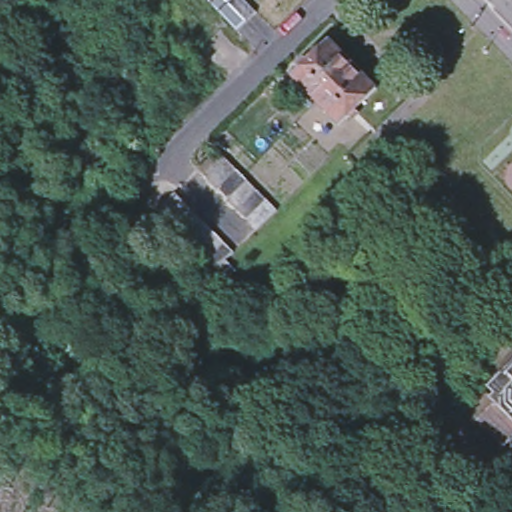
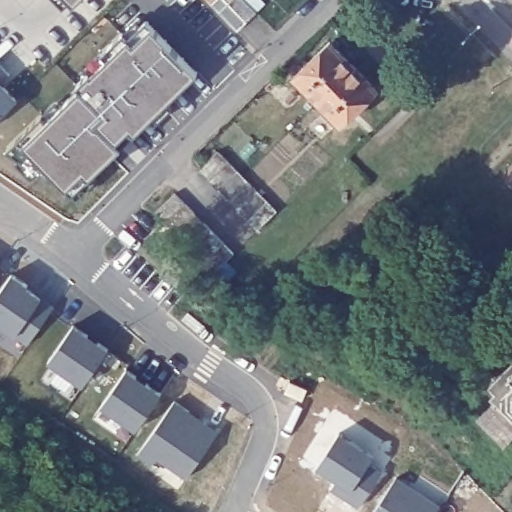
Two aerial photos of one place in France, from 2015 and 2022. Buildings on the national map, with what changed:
new [(61,0),(82,0),(71,11),(61,0)]
unchanged [(215,0),(245,0),(256,11),(246,20),(236,30),(211,4),(215,0)]
new [(75,199),(70,194),(46,169),(42,174),(38,170),(30,178),(13,161),(18,156),(4,148),(40,114),(53,100),(58,106),(78,86),(75,83),(87,71),(84,68),(99,53),(122,31),(135,18),(140,23),(144,18),(196,71),(166,101),(171,106),(153,123),(148,117),(89,176),(94,180),(75,199)]
unchanged [(329,40),(376,90),(339,125),(291,76),(329,40)]
new [(0,78),(0,64),(8,71),(0,78)]
new [(0,112),(0,84),(14,98),(0,112)]
unchanged [(245,219),(235,209),(226,199),(215,189),(206,179),(196,169),(197,167),(215,149),(226,160),(235,170),(245,180),(254,190),(264,200),(274,210),(254,229),(245,219)]
unchanged [(191,251),(181,241),(172,231),(162,221),(153,211),(172,192),(182,202),(191,212),(202,222),(211,232),(221,242),(231,252),(211,272),(201,261),(191,251)]
new [(24,284),(23,286),(50,306),(24,344),(0,327),(0,284),(8,273),(24,284)]
new [(70,324),(85,334),(83,337),(93,344),(94,341),(104,349),(79,385),(44,361),(70,324)]
unchanged [(494,399),(489,394),(494,389),(487,382),(512,356),(512,431),(500,443),(475,418),(494,399)]
new [(123,368),(133,376),(131,378),(144,387),(146,384),(158,393),(132,430),(97,406),(123,368)]
new [(186,411),(201,421),(216,431),(183,479),(153,458),(148,465),(133,455),(171,400),(186,411)]
new [(372,460),(368,470),(381,476),(358,510),(331,493),(336,483),(316,472),(339,439),(372,460)]
new [(394,477),(438,506),(434,512),(371,512),(394,477)]

